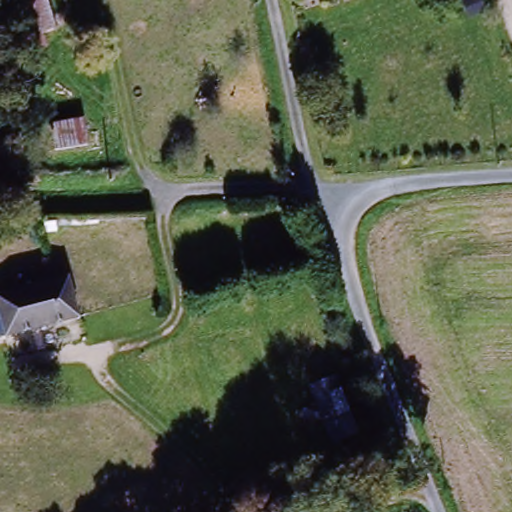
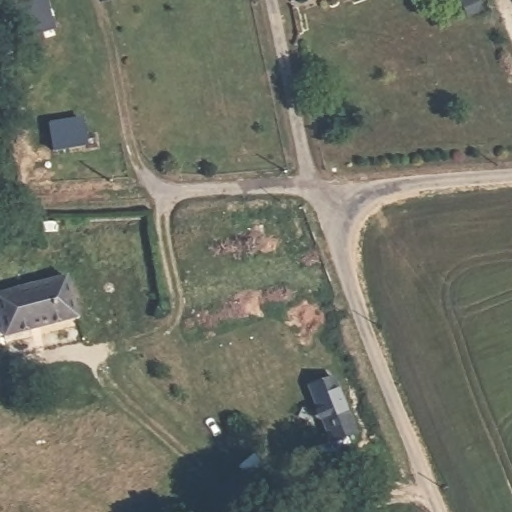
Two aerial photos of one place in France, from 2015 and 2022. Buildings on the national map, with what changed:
unchanged [(53,1),(59,30),(50,32),(53,45),(33,50),(31,39),(27,40),(19,9),(53,1)]
unchanged [(87,117),(90,142),(66,145),(61,120),(87,117)]
unchanged [(4,297),(21,292),(71,279),(81,317),(0,339),(0,310),(6,308),(4,297)]
unchanged [(295,328),(298,337),(308,333),(332,383),(309,395),(276,336),(295,328)]

